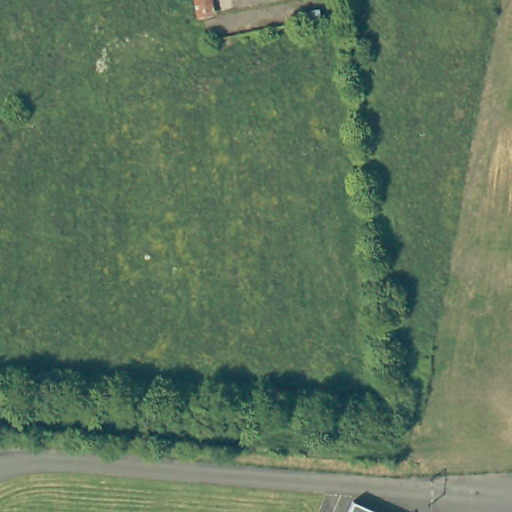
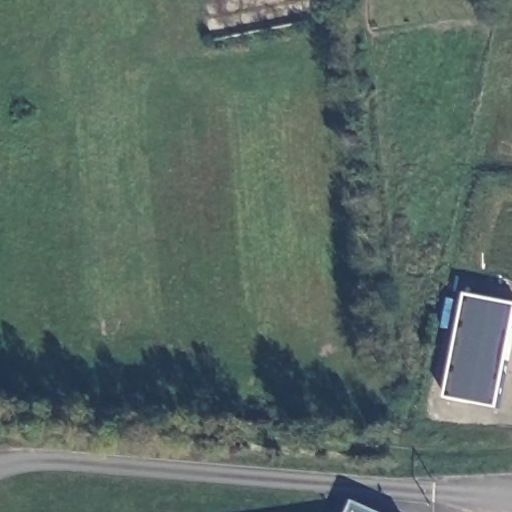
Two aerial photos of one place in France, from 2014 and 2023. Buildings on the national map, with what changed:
new [(512,305),(512,347),(500,410),(447,399),(468,295),(512,305)]
unchanged [(350,500),(375,512),(345,512),(350,500)]

